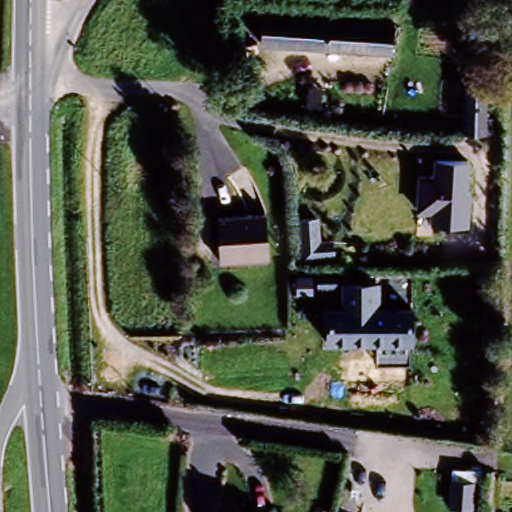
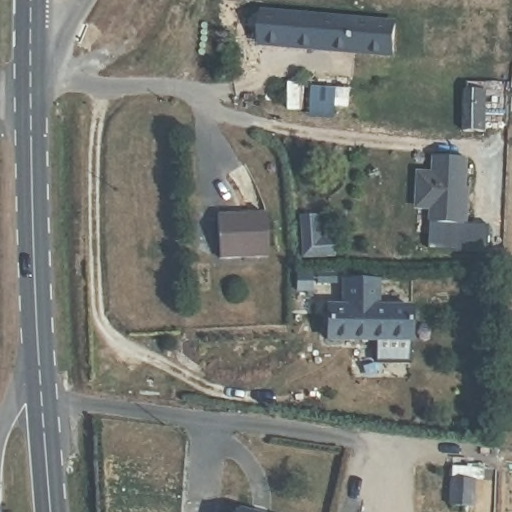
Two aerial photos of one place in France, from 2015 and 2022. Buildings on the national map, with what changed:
unchanged [(270,16),(392,25),(390,60),(267,50),(270,16)]
unchanged [(463,84),(494,86),(491,137),(460,135),(463,84)]
unchanged [(433,174),(433,160),(469,161),(467,190),(470,191),(468,226),(430,225),(430,212),(417,212),(418,173),(433,174)]
unchanged [(271,255),(220,256),(219,213),(270,212),(271,255)]
unchanged [(412,309),(412,341),(409,341),(409,362),(376,362),(376,342),(327,342),(327,308),(344,308),(344,289),(345,283),(377,283),(377,289),(376,309),(412,309)]
unchanged [(479,503),(457,501),(457,477),(477,477),(479,503)]

